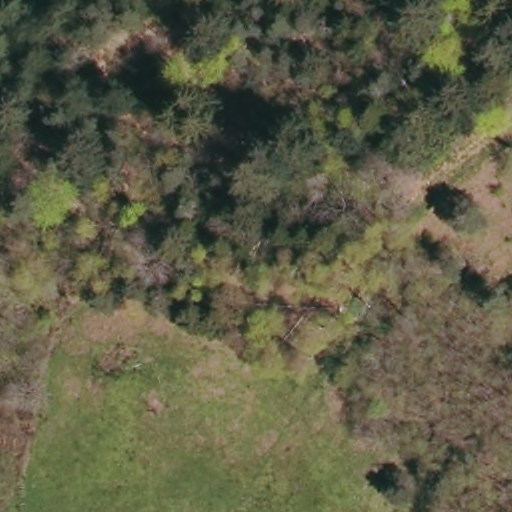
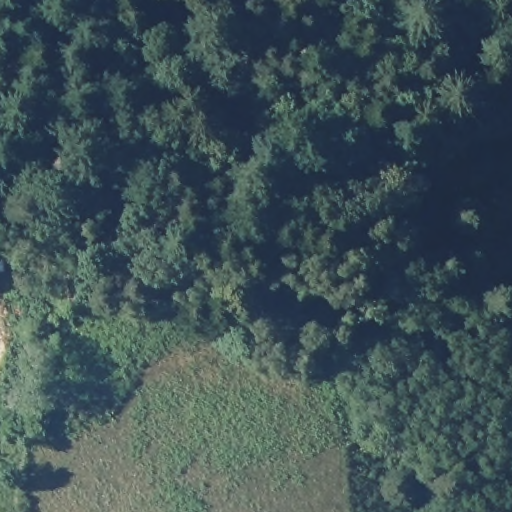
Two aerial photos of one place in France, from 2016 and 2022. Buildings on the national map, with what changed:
unchanged [(85,269),(96,293),(72,303),(63,282),(62,279),(85,269)]

